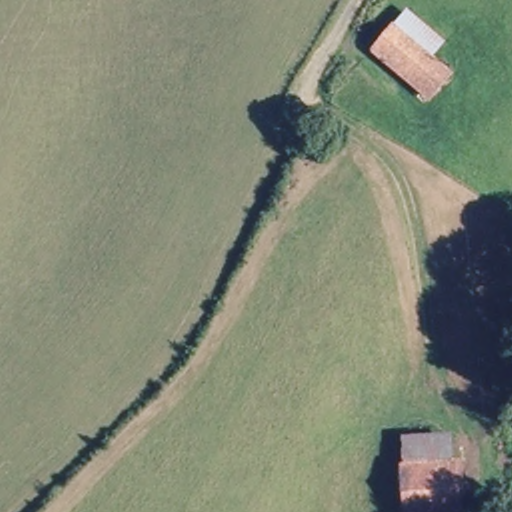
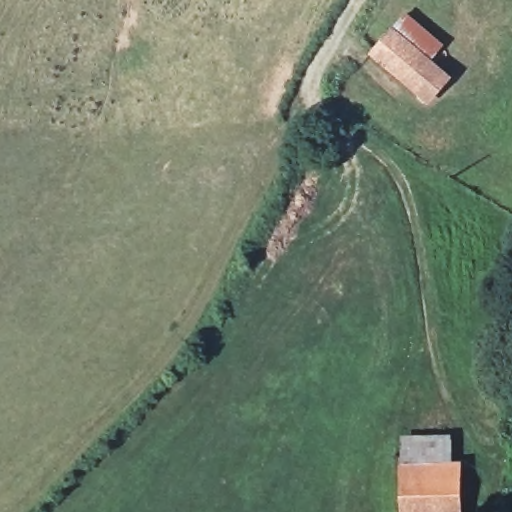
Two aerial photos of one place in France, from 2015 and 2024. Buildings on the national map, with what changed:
unchanged [(446,81),(429,105),(369,58),(389,34),(446,81)]
unchanged [(444,488),(460,489),(462,512),(400,512),(397,464),(443,462),(444,488)]

